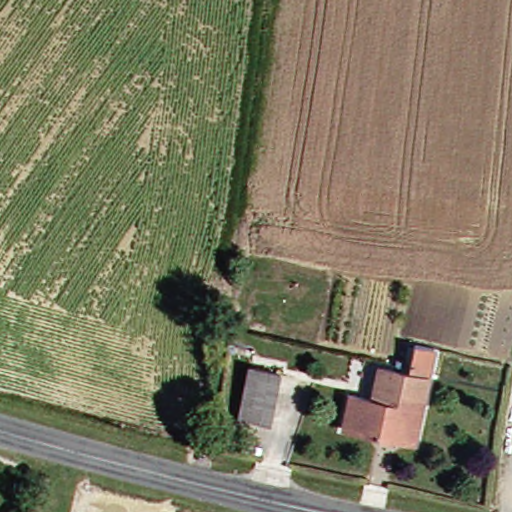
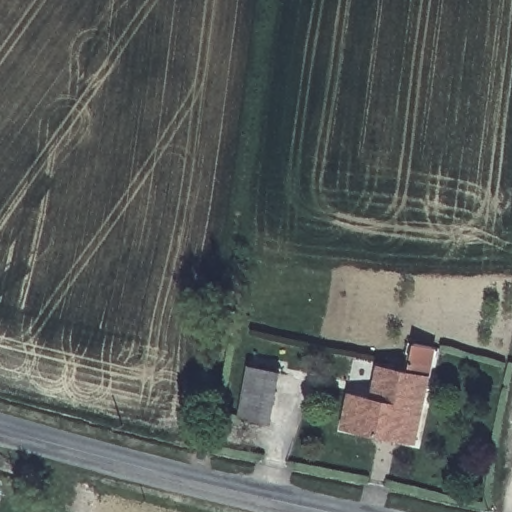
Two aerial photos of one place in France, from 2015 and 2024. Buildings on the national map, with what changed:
unchanged [(244,365),(274,371),(268,423),(237,417),(244,365)]
unchanged [(420,378),(408,440),(379,434),(335,425),(342,396),(365,400),(368,385),(371,368),(420,378)]

